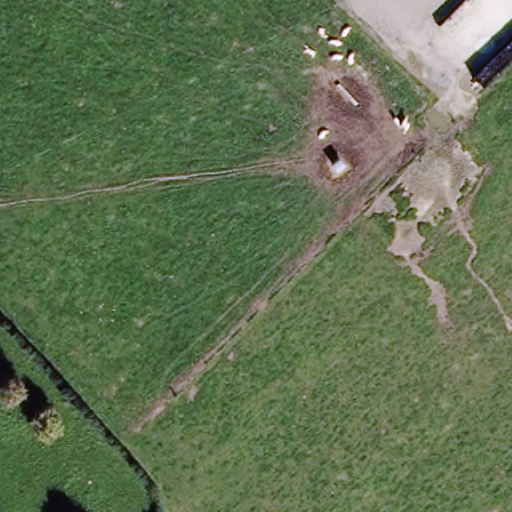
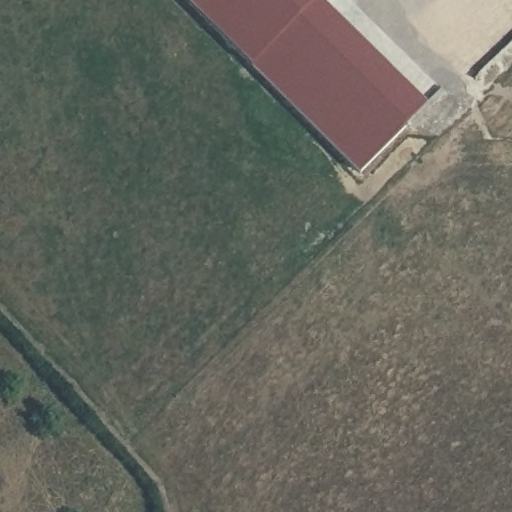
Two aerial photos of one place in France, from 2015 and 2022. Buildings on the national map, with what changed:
new [(428,108),(359,176),(249,69),(321,1),(428,108)]

